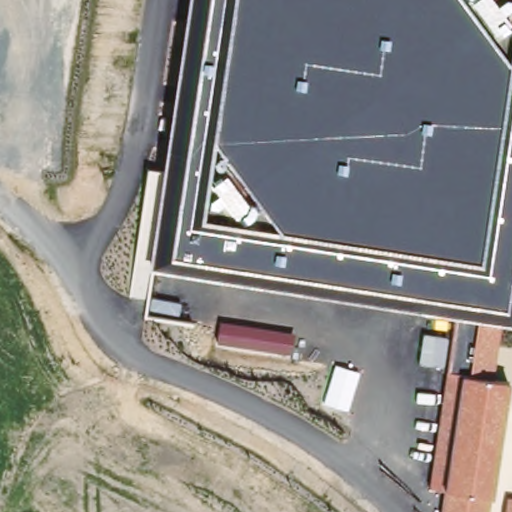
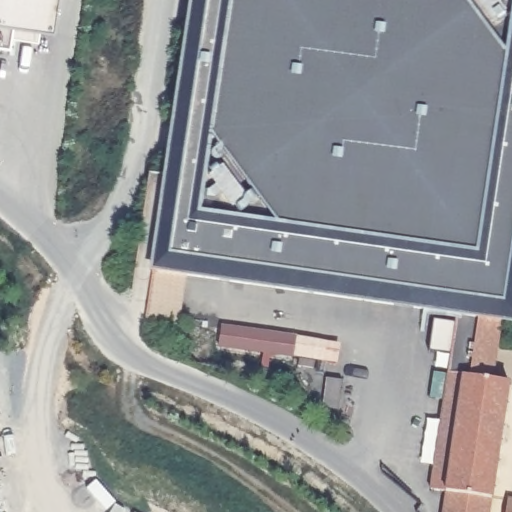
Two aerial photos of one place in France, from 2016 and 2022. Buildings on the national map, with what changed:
new [(42,32),(0,25),(0,0),(48,0),(42,32)]
unchanged [(457,316),(150,268),(190,0),(512,0),(512,325),(499,323),(457,316)]
unchanged [(495,380),(510,383),(492,498),(490,512),(442,512),(445,490),(431,489),(457,316),(499,323),(495,380)]
unchanged [(296,335),(293,356),(220,344),(222,324),(296,335)]
unchanged [(512,499),(512,512),(506,512),(508,498),(512,499)]

